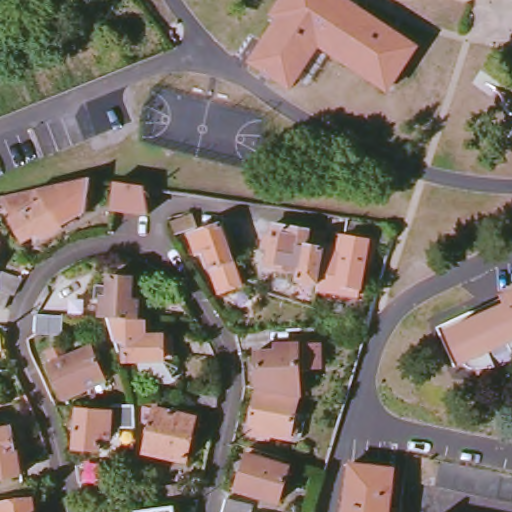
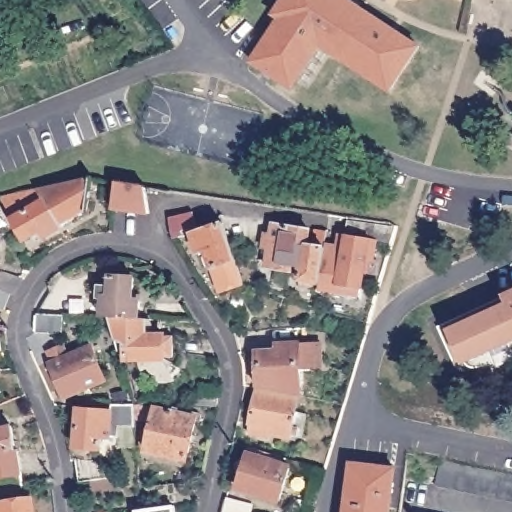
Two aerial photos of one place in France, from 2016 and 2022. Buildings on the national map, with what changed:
unchanged [(367,3),(362,7),(422,45),(391,94),(325,49),(295,91),(250,61),(279,20),(272,14),(281,0),(362,0),(367,3)]
unchanged [(56,185),(88,178),(85,208),(57,223),(58,226),(40,236),(37,229),(22,237),(12,216),(0,196),(5,195),(37,189),(56,185)]
unchanged [(147,188),(150,211),(115,206),(118,182),(147,188)]
unchanged [(219,294),(204,252),(195,255),(189,237),(217,219),(218,218),(240,221),(241,246),(227,250),(240,287),(219,294)]
unchanged [(316,286),(321,250),(336,252),(339,235),(342,236),(345,224),(372,233),(369,246),(370,248),(368,267),(372,268),(370,282),(360,281),(357,299),(315,294),(316,286)]
unchanged [(323,235),(321,250),(316,286),(311,285),(308,293),(300,290),(299,289),(300,284),(297,283),(297,276),(263,270),(267,251),(261,250),(263,238),(269,239),(271,227),(323,235)]
unchanged [(7,292),(0,290),(0,270),(18,278),(12,294),(7,292)]
unchanged [(107,316),(99,315),(98,298),(95,298),(95,284),(107,285),(107,276),(130,276),(131,299),(137,299),(140,317),(107,316)]
unchanged [(7,292),(1,308),(0,308),(0,290),(7,292)]
unchanged [(502,305),(499,297),(512,291),(512,354),(510,355),(504,342),(485,351),(492,366),(470,368),(468,358),(457,364),(444,332),(502,305)]
unchanged [(66,314),(65,333),(40,332),(40,313),(66,314)]
unchanged [(107,316),(140,317),(140,333),(160,334),(160,337),(168,336),(170,356),(160,356),(160,359),(123,358),(122,350),(117,352),(107,316)]
unchanged [(2,332),(2,338),(2,344),(3,349),(0,350),(0,333),(2,332)]
unchanged [(317,340),(317,367),(297,368),(297,395),(267,390),(267,383),(253,383),(253,349),(273,349),(273,341),(295,340),(317,340)]
unchanged [(50,358),(64,353),(65,357),(92,347),(107,379),(68,398),(50,358)]
unchanged [(218,406),(190,403),(191,389),(219,389),(218,406)]
unchanged [(251,428),(252,424),(247,422),(253,389),(295,398),(292,410),(303,413),(297,437),(287,435),(286,437),(251,428)]
unchanged [(130,398),(130,419),(107,418),(107,431),(97,431),(97,442),(72,439),(75,403),(107,405),(108,398),(130,398)]
unchanged [(147,450),(155,407),(197,416),(188,459),(147,450)]
unchanged [(13,427),(15,451),(18,451),(21,473),(0,475),(0,428),(13,427)]
unchanged [(285,456),(282,463),(292,466),(281,501),(238,488),(252,446),(285,456)]
unchanged [(72,453),(90,455),(98,451),(101,458),(102,464),(103,472),(75,475),(72,453)]
unchanged [(442,460),(490,470),(512,475),(512,502),(438,485),(442,460)]
unchanged [(398,468),(392,512),(348,512),(355,462),(398,468)]
unchanged [(151,509),(149,492),(176,489),(177,506),(151,509)]
unchanged [(33,498),(35,512),(0,512),(0,503),(33,498)]
unchanged [(253,505),(252,512),(223,512),(227,499),(253,505)]
unchanged [(175,512),(165,512),(175,511),(175,512)]

